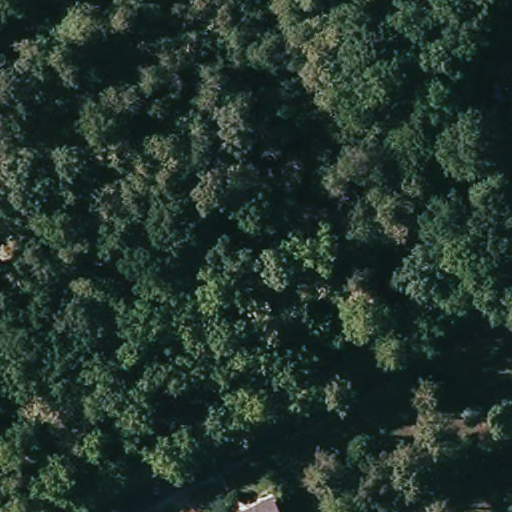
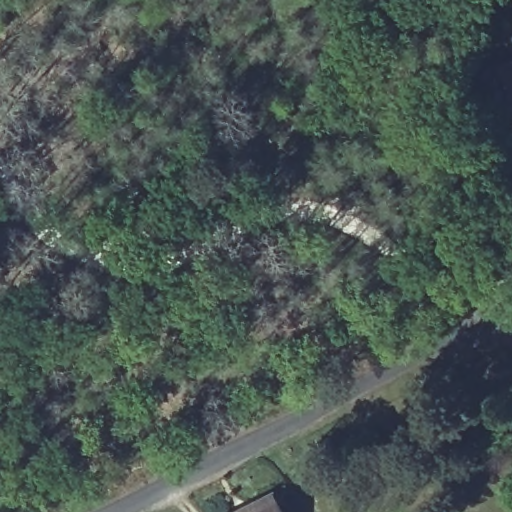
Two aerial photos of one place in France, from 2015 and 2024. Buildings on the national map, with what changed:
unchanged [(500,84),(512,79),(512,109),(500,84)]
unchanged [(271,491),(282,512),(230,512),(271,491)]

